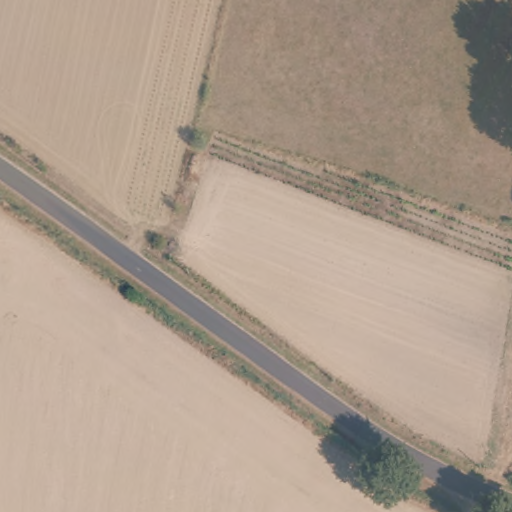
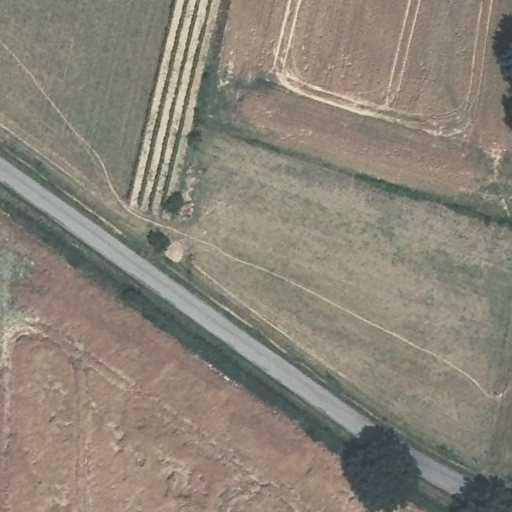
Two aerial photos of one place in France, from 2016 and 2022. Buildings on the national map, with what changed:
[]

